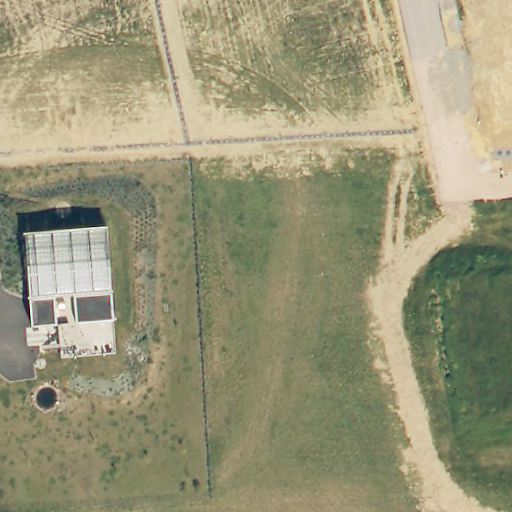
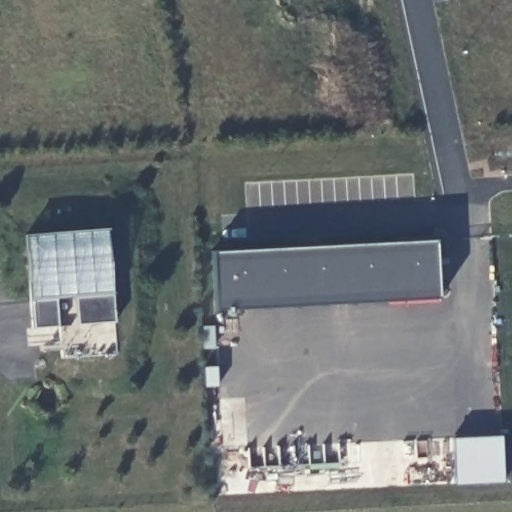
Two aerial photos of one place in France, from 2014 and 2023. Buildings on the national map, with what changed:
unchanged [(59,325),(31,327),(25,235),(107,229),(113,321),(116,356),(62,360),(59,325)]
new [(439,299),(215,310),(211,251),(436,240),(439,299)]
new [(455,485),(452,437),(500,435),(503,481),(455,485)]

